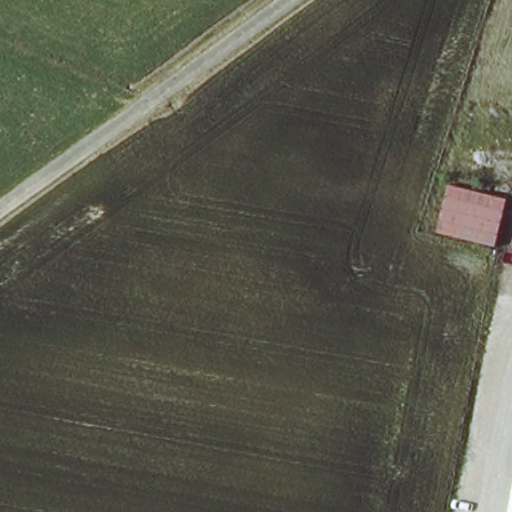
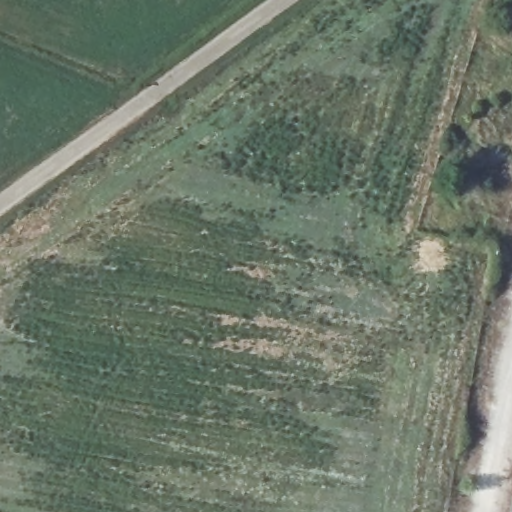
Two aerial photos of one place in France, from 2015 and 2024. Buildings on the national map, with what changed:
demolished [(495,247),(438,233),(447,194),(502,208),(495,247)]

